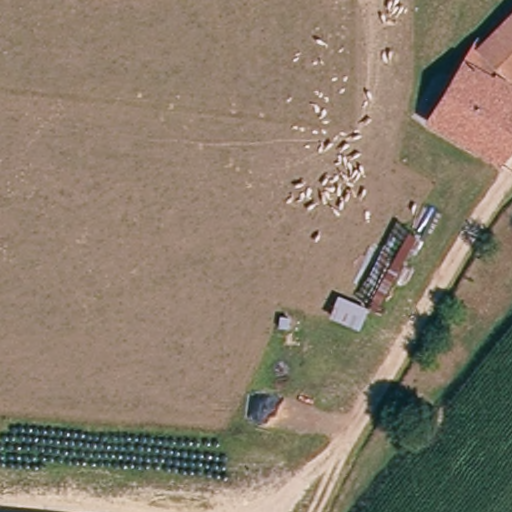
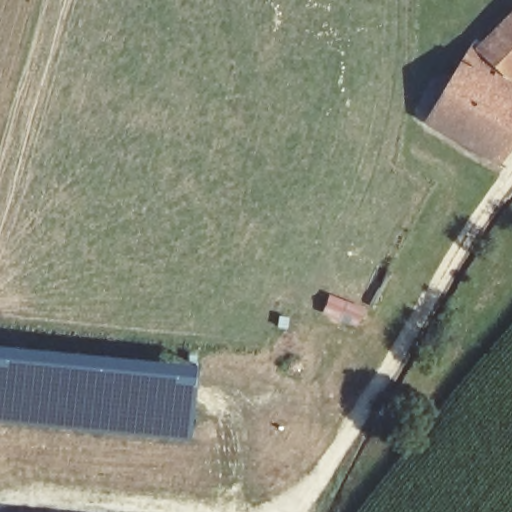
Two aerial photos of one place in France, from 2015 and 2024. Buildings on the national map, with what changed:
unchanged [(430,115),(454,71),(467,46),(478,54),(504,28),(496,20),(512,3),(512,92),(509,95),(512,97),(512,141),(494,166),(493,168),(423,129),(430,115)]
unchanged [(409,104),(436,61),(454,71),(430,115),(409,104)]
new [(196,411),(192,441),(0,420),(0,345),(198,363),(196,411)]

